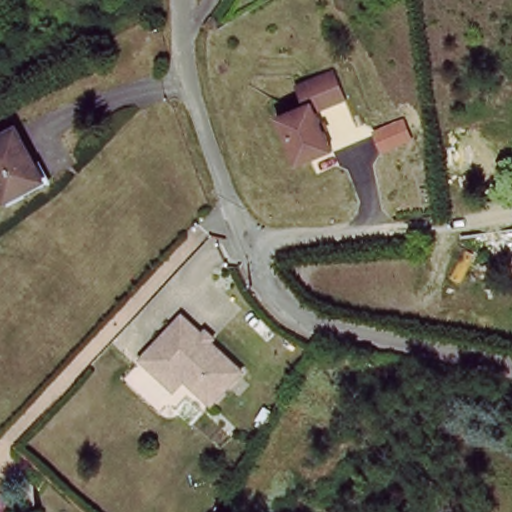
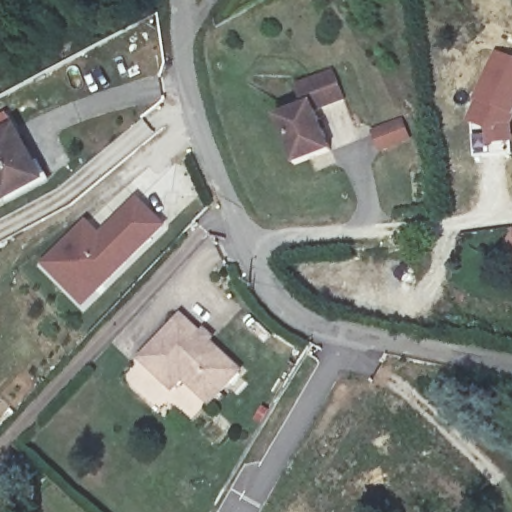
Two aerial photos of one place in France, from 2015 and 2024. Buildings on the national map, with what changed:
new [(512,59),(512,122),(511,125),(512,137),(512,155),(477,158),(473,121),(499,54),(512,59)]
unchanged [(295,167),(274,118),(301,107),(291,87),(331,71),(343,100),(314,113),(330,152),(295,167)]
unchanged [(402,123),(409,139),(382,150),(375,134),(402,123)]
unchanged [(8,200),(0,185),(0,136),(15,128),(43,180),(8,200)]
new [(75,296),(46,266),(88,224),(102,238),(114,226),(138,201),(165,227),(98,294),(86,306),(75,296)]
unchanged [(165,378),(143,359),(183,315),(243,369),(214,402),(186,377),(176,388),(165,378)]

